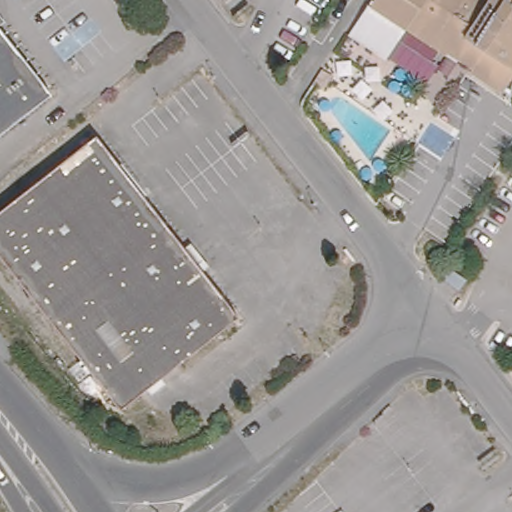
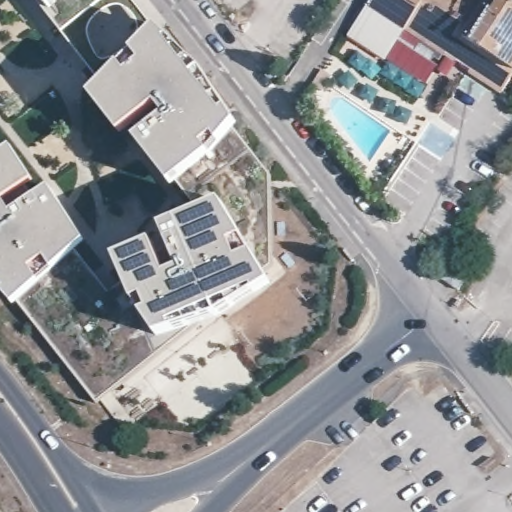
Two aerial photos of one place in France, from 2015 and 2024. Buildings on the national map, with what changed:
new [(158,28),(200,67),(236,124),(269,173),(256,254),(273,285),(220,318),(159,338),(97,402),(21,298),(14,304),(0,288),(0,0),(136,0),(158,28)]
unchanged [(494,0),(512,0),(512,85),(507,94),(478,74),(478,70),(455,54),(453,57),(439,48),(419,75),(417,78),(356,37),(380,0),(487,0),(492,4),(494,0)]
demolished [(35,71),(52,93),(0,134),(0,33),(31,74),(35,71)]
unchanged [(309,88),(319,71),(331,79),(320,95),(309,88)]
demolished [(133,186),(129,190),(146,211),(151,207),(188,254),(181,259),(198,278),(203,275),(238,318),(161,378),(145,391),(118,409),(0,259),(0,217),(98,141),(133,186)]
unchanged [(453,292),(438,282),(446,270),(461,280),(453,292)]

